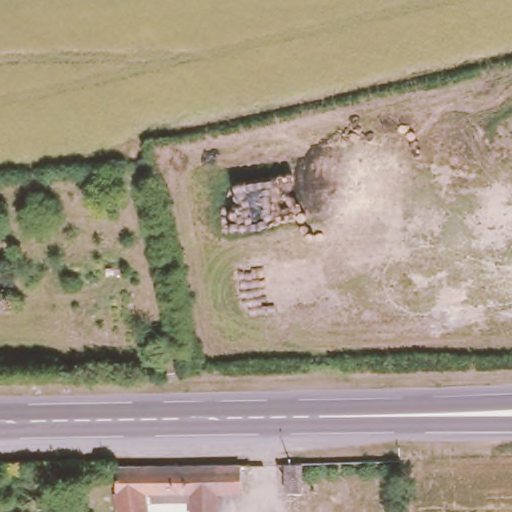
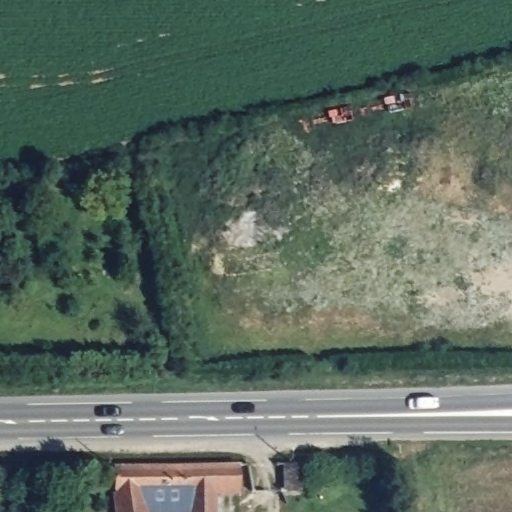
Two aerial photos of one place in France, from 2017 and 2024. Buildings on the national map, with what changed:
unchanged [(112,463),(232,461),(233,490),(210,491),(209,512),(186,512),(186,491),(138,491),(141,512),(113,512),(110,489),(112,463)]

